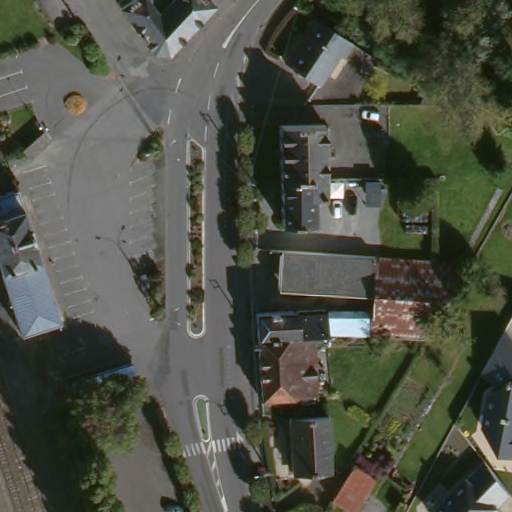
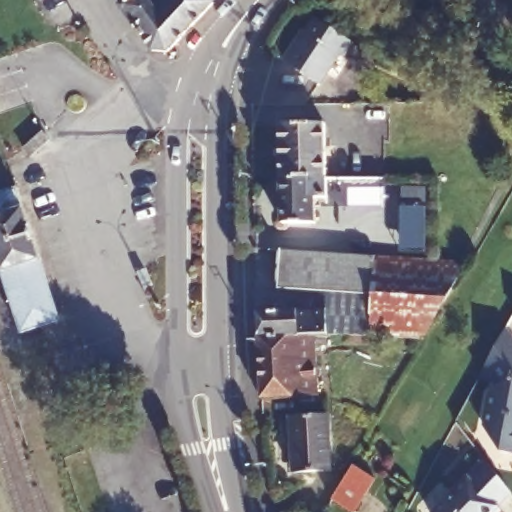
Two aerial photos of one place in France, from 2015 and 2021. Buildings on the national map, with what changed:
unchanged [(215,13),(170,61),(154,61),(121,14),(119,6),(127,0),(143,0),(223,0),(212,11),(215,13)]
unchanged [(282,74),(293,59),(295,61),(305,46),(301,45),(311,31),(338,49),(350,57),(340,72),(335,69),(316,99),(281,75),(282,74)]
unchanged [(421,102),(431,81),(461,95),(460,101),(421,102)]
unchanged [(310,226),(275,226),(275,183),(275,129),(321,127),(323,182),(323,200),(310,200),(310,226)]
unchanged [(50,137),(32,154),(25,148),(44,131),(48,136),(50,137)]
unchanged [(61,325),(22,338),(0,268),(0,198),(17,192),(61,325)]
unchanged [(371,258),(369,291),(276,291),(278,254),(371,258)]
unchanged [(342,310),(368,308),(369,291),(371,258),(433,263),(467,265),(420,344),(345,342),(345,338),(321,339),(320,311),(342,310)]
unchanged [(320,311),(321,339),(310,340),(310,338),(254,340),(252,314),(320,311)]
unchanged [(507,331),(512,339),(512,458),(502,455),(483,428),(488,395),(496,389),(491,384),(480,377),(507,331)]
unchanged [(254,340),(310,338),(310,340),(313,398),(259,401),(254,340)]
unchanged [(288,426),(326,424),(332,477),(295,480),(288,426)]
unchanged [(504,495),(491,508),(494,512),(429,512),(478,461),(504,495)]
unchanged [(368,493),(357,512),(326,512),(345,478),(368,493)]
unchanged [(307,500),(312,512),(285,512),(307,500)]

